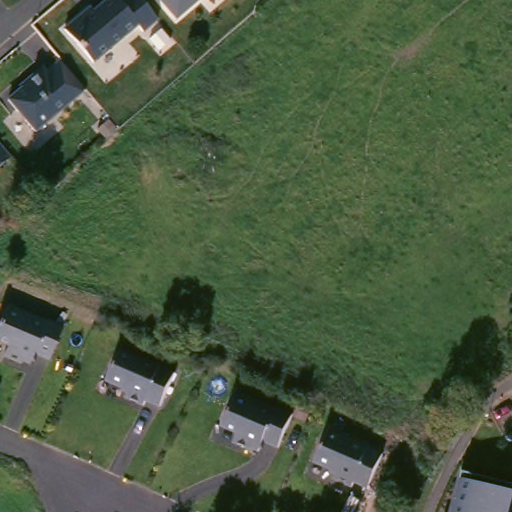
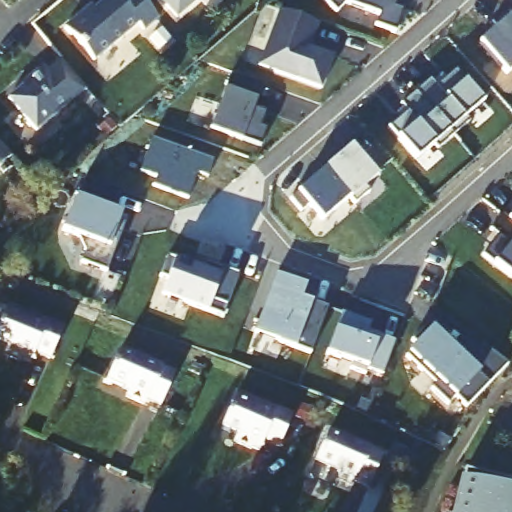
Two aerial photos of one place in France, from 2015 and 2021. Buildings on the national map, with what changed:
unchanged [(147,27),(141,20),(97,58),(68,25),(88,8),(91,12),(106,0),(149,0),(161,14),(147,27)]
unchanged [(168,0),(194,0),(179,13),(168,0)]
new [(405,10),(396,33),(377,26),(381,16),(348,3),(338,13),(327,0),(398,0),(396,7),(405,10)]
new [(280,8),(318,23),(312,39),(306,36),(303,44),(333,55),(321,88),(258,65),(280,8)]
new [(494,19),(507,8),(512,14),(512,70),(510,72),(482,40),(500,25),(494,19)]
unchanged [(85,84),(36,127),(9,94),(29,77),(27,75),(43,61),(47,66),(60,55),(85,84)]
new [(433,73),(440,81),(459,64),(487,98),(470,112),(473,116),(457,131),(418,86),(433,73)]
new [(234,70),(265,82),(256,106),(268,111),(263,125),(268,127),(261,145),(212,126),(234,70)]
unchanged [(22,152),(8,164),(7,162),(0,168),(0,126),(22,152)]
new [(153,138),(212,161),(207,177),(197,173),(188,198),(152,185),(155,175),(141,170),(153,138)]
new [(352,147),(378,178),(352,200),(348,197),(326,170),(352,147)]
new [(348,197),(322,220),(309,205),(302,211),(292,199),(326,170),(348,197)]
new [(123,227),(107,270),(81,259),(85,248),(78,233),(62,227),(76,192),(78,193),(86,173),(121,187),(114,206),(123,210),(120,219),(125,221),(123,227)]
new [(492,231),(512,204),(512,277),(483,256),(498,235),(492,231)]
new [(207,312),(162,296),(169,279),(161,278),(168,257),(176,260),(192,265),(195,258),(238,275),(224,319),(207,312)]
new [(277,271),(307,283),(301,300),(311,303),(313,299),(328,305),(311,350),(280,338),(280,337),(256,328),(277,271)]
unchanged [(0,336),(0,329),(12,301),(51,317),(51,315),(67,321),(54,355),(39,349),(34,359),(27,356),(26,359),(9,351),(13,341),(0,336)]
new [(343,309),(372,320),(368,328),(396,338),(384,368),(368,362),(367,367),(352,362),(353,357),(328,347),(343,309)]
new [(432,390),(439,383),(410,354),(418,345),(413,341),(426,329),(430,333),(432,331),(452,350),(467,334),(507,365),(466,408),(455,397),(447,406),(432,390)]
unchanged [(162,405),(149,399),(147,404),(129,396),(131,389),(109,380),(122,348),(177,370),(162,405)]
unchanged [(277,443),(262,437),(257,447),(250,444),(250,446),(232,439),(236,429),(221,423),(235,389),(273,405),(275,403),(291,410),(277,443)]
unchanged [(386,450),(371,484),(357,478),(355,483),(337,475),(340,468),(317,458),(332,426),(386,450)]
unchanged [(512,476),(512,512),(453,512),(466,464),(512,476)]

